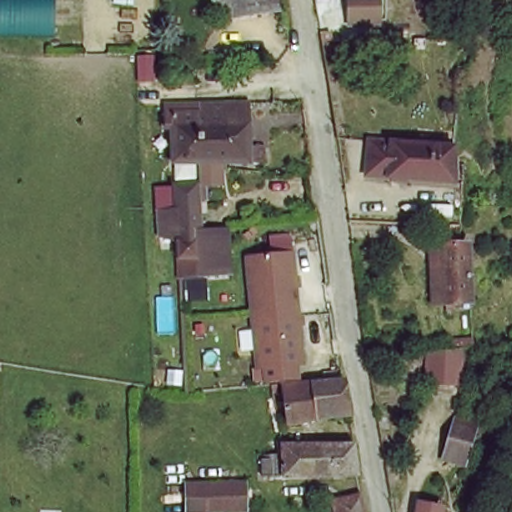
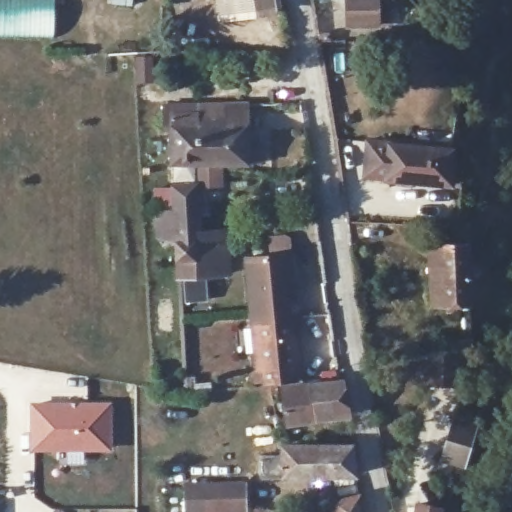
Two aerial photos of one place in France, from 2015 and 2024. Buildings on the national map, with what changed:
new [(53,0),(53,32),(0,32),(0,0),(53,0)]
unchanged [(222,16),(220,0),(276,0),(278,13),(222,16)]
unchanged [(348,21),(347,0),(378,0),(379,19),(348,21)]
unchanged [(200,113),(200,106),(201,106),(229,102),(230,111),(234,169),(202,170),(200,113)]
unchanged [(254,111),(257,169),(234,169),(230,111),(254,111)]
unchanged [(179,171),(178,141),(172,141),(171,114),(175,114),(200,113),(202,170),(179,171)]
unchanged [(446,146),(453,146),(452,182),(374,181),(374,144),(446,146)]
unchanged [(172,238),(170,189),(192,189),(194,226),(194,238),(172,238)]
unchanged [(194,238),(222,238),(222,279),(214,279),(175,283),(172,238),(194,238)]
unchanged [(438,307),(433,249),(462,247),(463,307),(438,307)]
unchanged [(265,372),(258,373),(247,261),(292,257),(303,368),(298,369),(300,384),(284,386),(275,387),(267,388),(267,387),(265,372)]
unchanged [(437,384),(434,359),(464,356),(466,381),(437,384)]
unchanged [(300,384),(347,379),(352,406),(354,419),(290,426),(284,386),(300,384)]
new [(29,401),(113,401),(113,452),(84,452),(84,463),(65,463),(65,452),(29,452),(29,401)]
unchanged [(467,469),(447,464),(456,423),(477,427),(467,469)]
unchanged [(361,478),(310,480),(270,479),(270,464),(277,464),(277,457),(288,458),(289,454),(358,453),(361,478)]
unchanged [(190,490),(199,489),(249,487),(249,512),(191,512),(190,490)]
unchanged [(334,510),(359,502),(362,512),(335,512),(334,510)]
unchanged [(422,508),(446,512),(445,512),(421,512),(422,508)]

